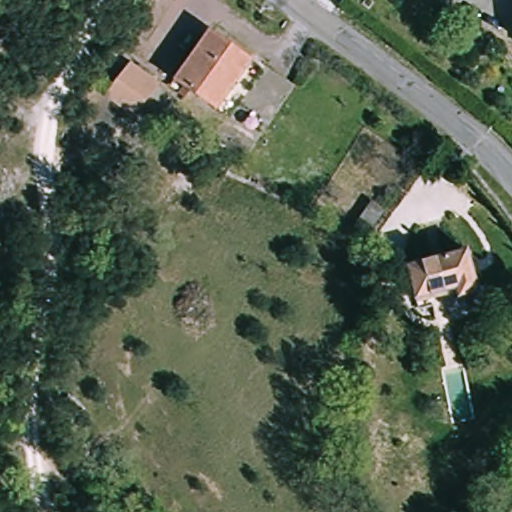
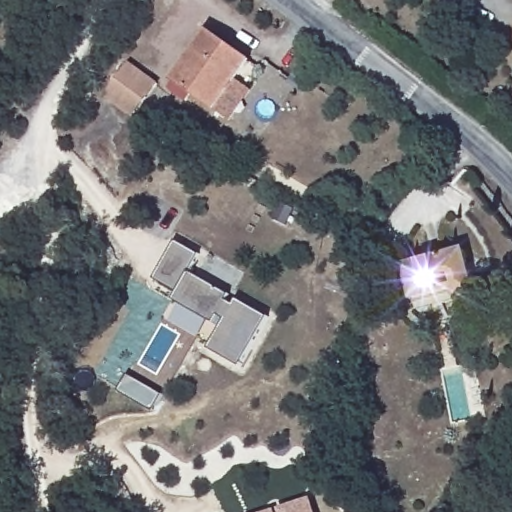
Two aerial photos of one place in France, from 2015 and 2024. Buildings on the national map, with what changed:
unchanged [(210,110),(172,78),(208,35),(247,67),(210,110)]
unchanged [(104,88),(133,61),(157,87),(128,114),(104,88)]
unchanged [(358,265),(343,255),(361,230),(376,238),(358,265)]
new [(154,278),(176,240),(200,253),(189,272),(230,294),(227,301),(234,305),(238,299),(268,316),(241,366),(209,349),(227,319),(219,314),(214,322),(173,300),(178,291),(154,278)]
unchanged [(415,289),(412,256),(470,248),(475,293),(454,296),(416,300),(415,289)]
new [(316,512),(265,512),(311,496),(316,512)]

